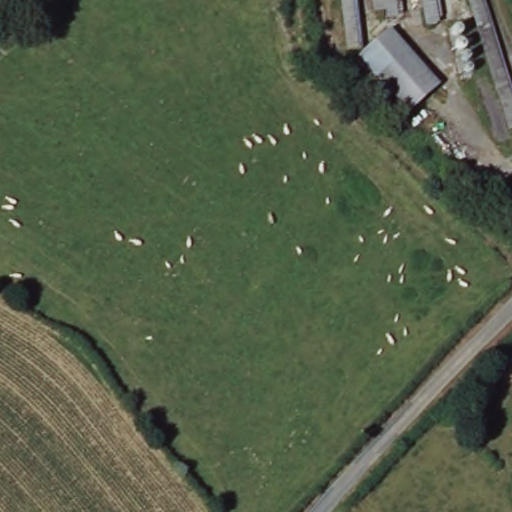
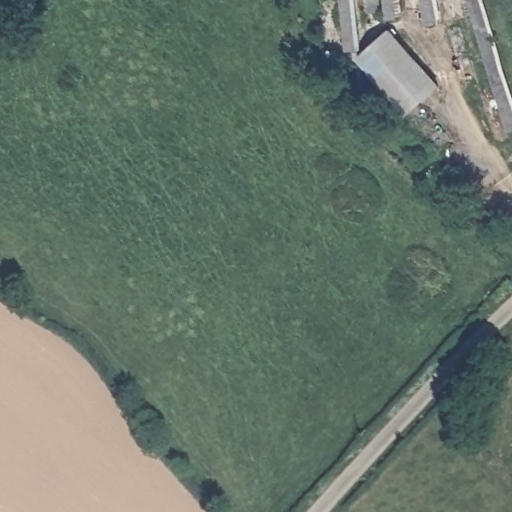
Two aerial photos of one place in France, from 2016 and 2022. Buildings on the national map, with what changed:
unchanged [(364,50),(348,51),(343,0),(358,0),(364,50)]
unchanged [(399,23),(377,22),(374,0),(397,0),(399,23)]
unchanged [(441,26),(427,26),(423,0),(437,0),(441,26)]
unchanged [(469,0),(487,0),(512,81),(512,134),(512,135),(469,0)]
unchanged [(391,34),(440,86),(410,114),(362,62),(391,34)]

